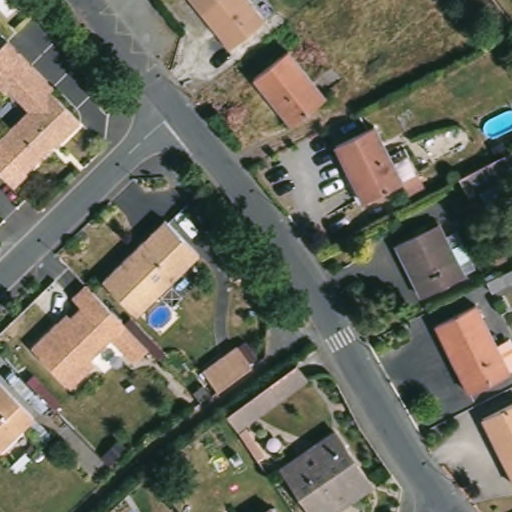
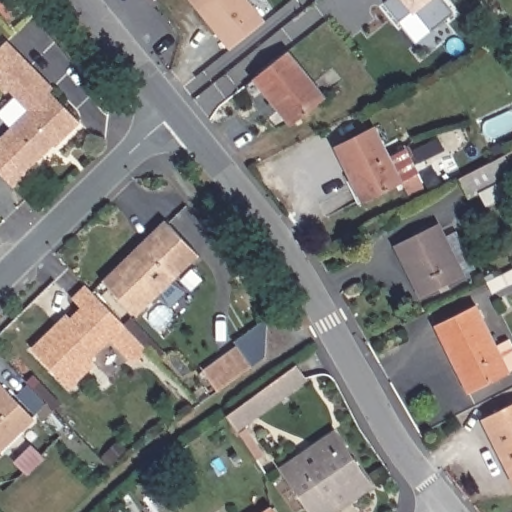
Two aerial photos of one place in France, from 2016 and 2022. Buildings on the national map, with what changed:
unchanged [(200,0),(246,0),(271,34),(235,60),(193,5),(200,0)]
new [(453,14),(430,32),(413,10),(398,22),(383,3),(387,0),(442,0),(453,14)]
unchanged [(56,89),(53,92),(83,123),(59,147),(55,143),(28,170),(28,174),(15,186),(3,174),(0,170),(0,142),(31,111),(11,90),(7,94),(0,86),(0,67),(4,71),(22,54),(56,89)]
unchanged [(287,55),(326,102),(289,130),(251,81),(287,55)]
unchanged [(428,197),(412,205),(401,182),(360,201),(334,144),(375,125),(389,156),(403,150),(415,176),(418,175),(428,197)]
unchanged [(197,260),(136,320),(103,284),(165,225),(197,260)]
unchanged [(435,227),(440,238),(450,235),(467,273),(421,295),(396,245),(435,227)]
unchanged [(59,334),(80,315),(65,299),(82,284),(129,333),(152,357),(137,372),(114,348),(92,370),(96,373),(70,398),(28,352),(54,328),(59,334)]
unchanged [(498,346),(512,340),(512,368),(507,370),(508,372),(468,391),(437,328),(479,307),(498,346)]
unchanged [(197,371),(231,346),(246,366),(212,391),(197,371)]
unchanged [(304,383),(238,435),(227,420),(294,368),(304,383)]
unchanged [(3,380),(39,419),(0,457),(0,383),(3,380)]
unchanged [(512,479),(483,422),(512,408),(512,479)]
unchanged [(371,485),(332,512),(312,512),(282,470),(334,432),(371,485)]
unchanged [(103,459),(116,447),(124,455),(111,468),(106,472),(98,463),(103,459)]
unchanged [(274,512),(270,512),(272,510),(274,512)]

